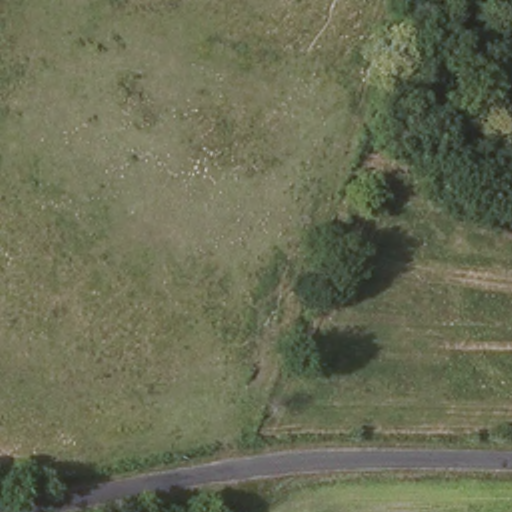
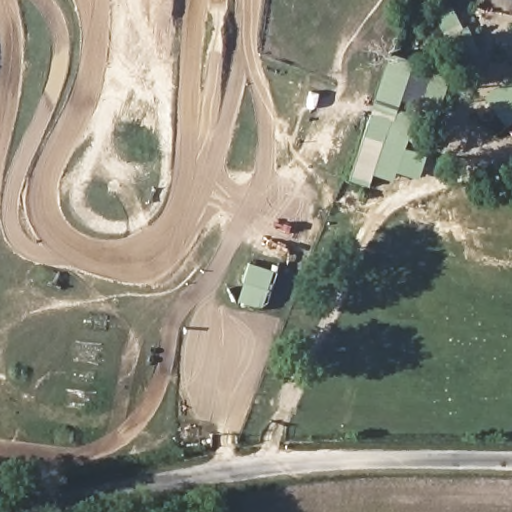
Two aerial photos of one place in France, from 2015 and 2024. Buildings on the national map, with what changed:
new [(478,51),(457,63),(432,14),(452,3),(478,51)]
new [(368,184),(350,179),(391,53),(413,59),(368,184)]
new [(419,96),(416,105),(398,99),(412,63),(450,78),(442,104),(419,96)]
new [(512,76),(512,122),(505,128),(482,97),(512,76)]
new [(417,180),(396,173),(392,181),(372,173),(396,109),(412,114),(406,133),(409,134),(404,147),(426,156),(417,180)]

